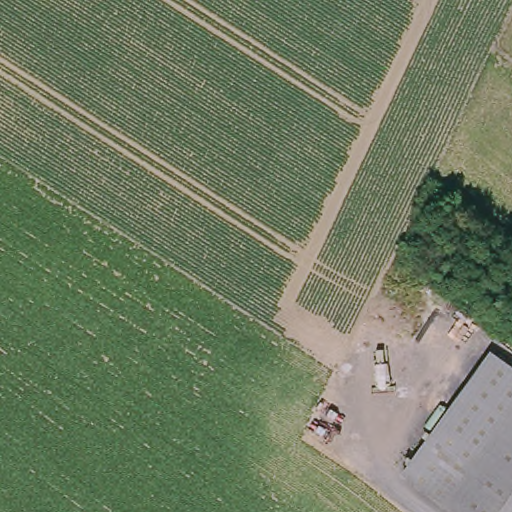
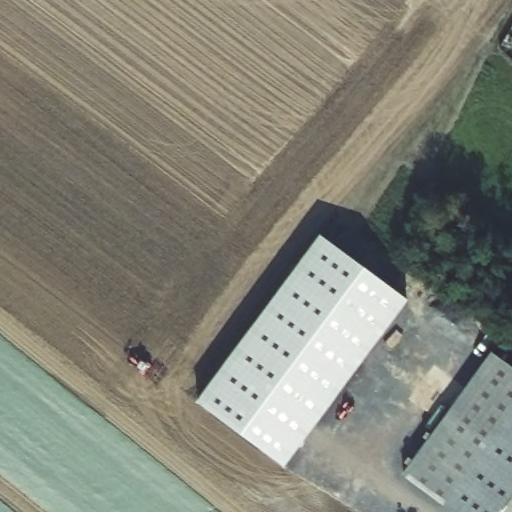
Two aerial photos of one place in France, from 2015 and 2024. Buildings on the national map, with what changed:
new [(289,460),(202,397),(322,230),(409,294),(289,460)]
unchanged [(443,504),(402,475),(491,352),(512,368),(512,409),(443,504)]
unchanged [(512,409),(512,512),(455,512),(443,504),(512,409)]

